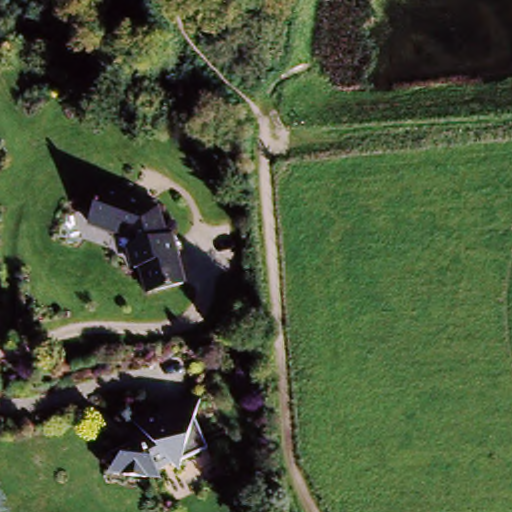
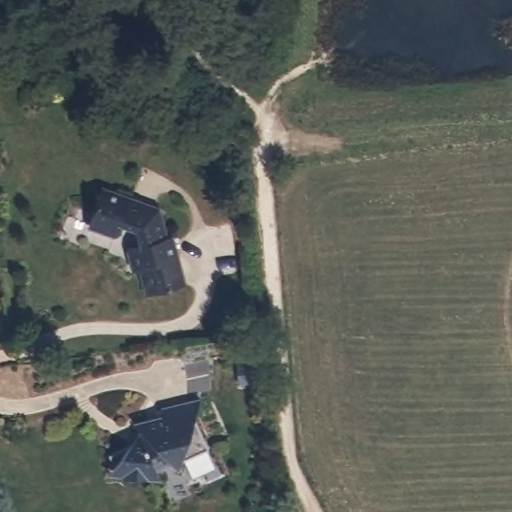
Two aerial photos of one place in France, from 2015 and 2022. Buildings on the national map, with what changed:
unchanged [(145,269),(137,272),(131,253),(140,249),(134,229),(115,221),(111,231),(82,219),(94,194),(110,189),(152,209),(162,237),(166,235),(174,257),(176,256),(186,284),(155,296),(145,269)]
unchanged [(105,468),(101,457),(134,451),(139,440),(145,438),(138,430),(164,426),(169,415),(210,407),(200,425),(208,458),(180,464),(175,473),(168,467),(151,470),(151,476),(140,478),(98,479),(105,468)]

